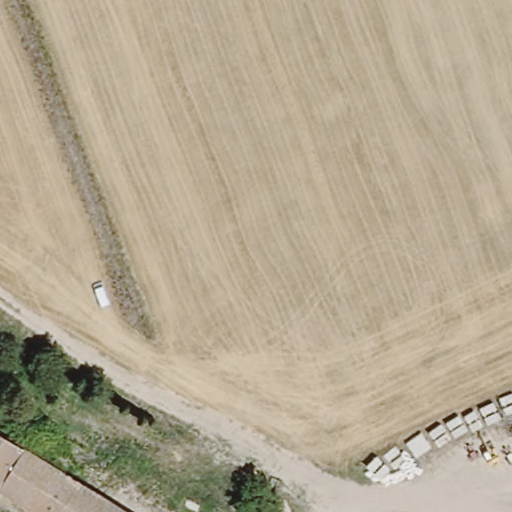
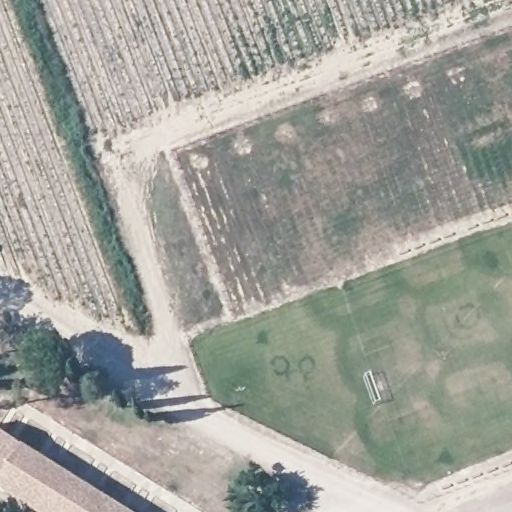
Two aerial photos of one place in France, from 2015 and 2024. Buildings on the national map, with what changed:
unchanged [(118,487),(154,512),(37,512),(0,488),(0,432),(109,501),(118,487)]

